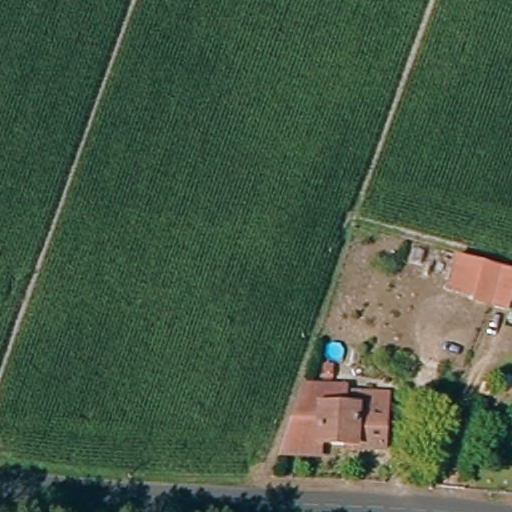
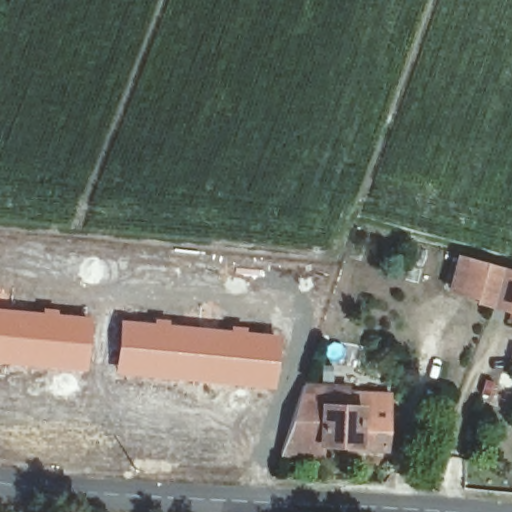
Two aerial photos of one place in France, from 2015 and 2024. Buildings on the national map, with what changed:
unchanged [(493,300),(492,303),(472,298),(473,297),(473,294),(446,288),(454,254),(499,265),(493,300)]
unchanged [(509,300),(509,303),(508,307),(492,303),(493,300),(499,265),(500,266),(512,269),(512,301),(509,300)]
new [(89,373),(0,364),(0,308),(96,317),(89,373)]
new [(120,319),(152,321),(283,335),(275,391),(116,376),(120,319)]
unchanged [(373,427),(373,454),(344,452),(344,444),(319,442),(319,457),(281,454),(310,351),(333,354),(320,403),(345,405),(345,413),(373,415),(373,427)]

